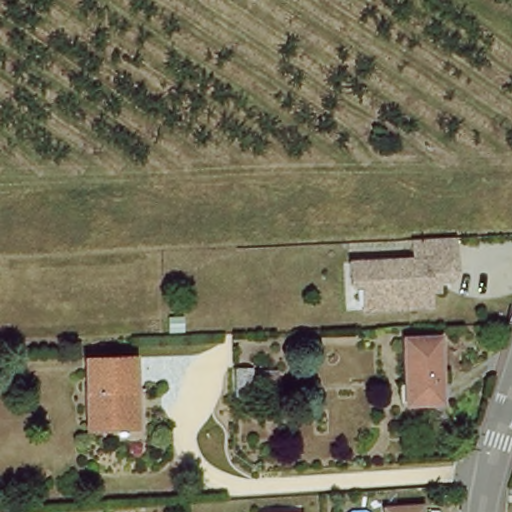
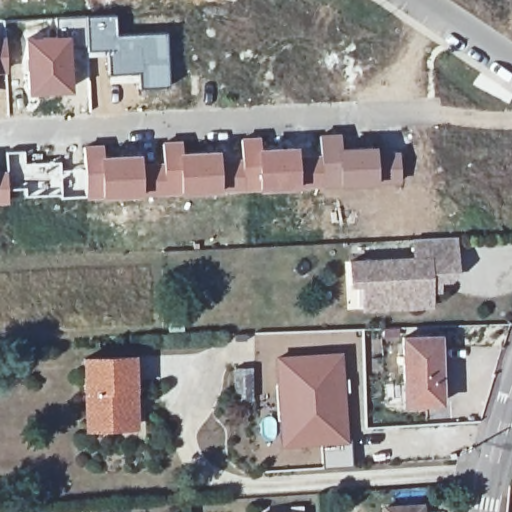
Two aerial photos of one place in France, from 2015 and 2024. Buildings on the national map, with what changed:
new [(115,13),(117,34),(167,31),(168,86),(138,87),(138,75),(107,77),(105,54),(84,55),(80,15),(115,13)]
new [(70,33),(70,90),(25,92),(22,37),(70,33)]
new [(7,71),(0,71),(0,36),(6,36),(7,71)]
new [(318,152),(317,134),(341,132),(341,146),(342,149),(338,149),(340,186),(298,188),(298,153),(318,152)]
new [(220,156),(240,155),(239,137),(260,135),(260,146),(258,147),(257,190),(219,192),(220,156)]
new [(140,161),(161,160),(160,141),(182,140),(182,150),(180,150),(180,194),(140,196),(140,161)]
new [(82,168),(81,145),(103,143),(104,154),(140,153),(140,161),(140,196),(98,200),(62,198),(62,169),(82,168)]
new [(258,147),(260,146),(297,145),(298,153),(298,188),(257,190),(258,147)]
new [(377,183),(340,186),(338,149),(342,149),(341,146),(375,145),(376,150),(399,149),(400,180),(377,183)]
new [(180,150),(182,150),(220,148),(220,156),(219,192),(180,194),(180,150)]
new [(0,204),(0,168),(5,168),(3,151),(25,150),(26,161),(61,159),(62,169),(62,198),(22,198),(22,190),(8,190),(9,204),(0,204)]
unchanged [(357,286),(355,263),(420,260),(419,240),(462,238),(463,273),(457,280),(448,280),(449,290),(437,291),(437,307),(378,309),(369,310),(368,286),(357,286)]
unchanged [(442,403),(407,404),(405,339),(439,338),(442,403)]
new [(321,469),(318,446),(280,450),(273,356),(343,350),(347,383),(350,443),(352,466),(321,469)]
unchanged [(135,390),(132,390),(133,427),(88,429),(85,359),(133,357),(135,390)]
unchanged [(253,368),(253,400),(237,401),(236,368),(253,368)]
unchanged [(422,501),(423,512),(386,512),(385,504),(422,501)]

